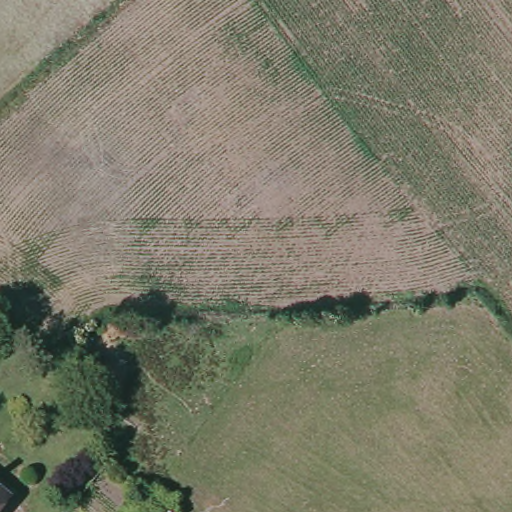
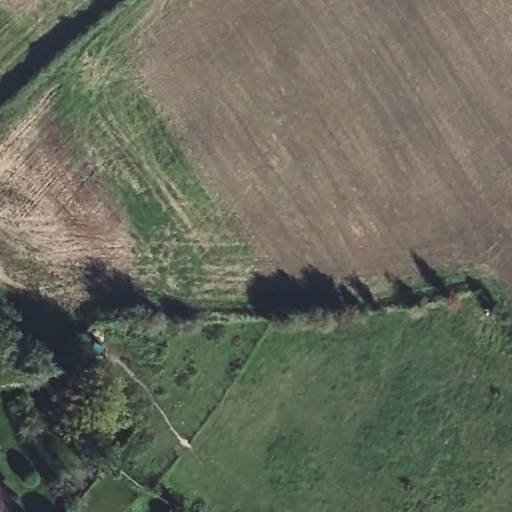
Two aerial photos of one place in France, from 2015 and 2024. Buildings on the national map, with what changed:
unchanged [(0,489),(0,480),(5,484),(0,489)]

